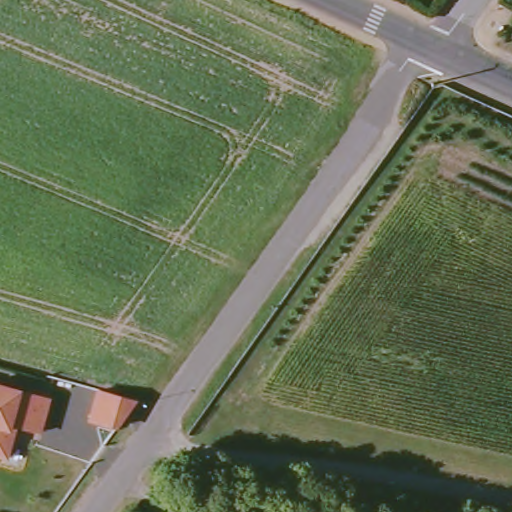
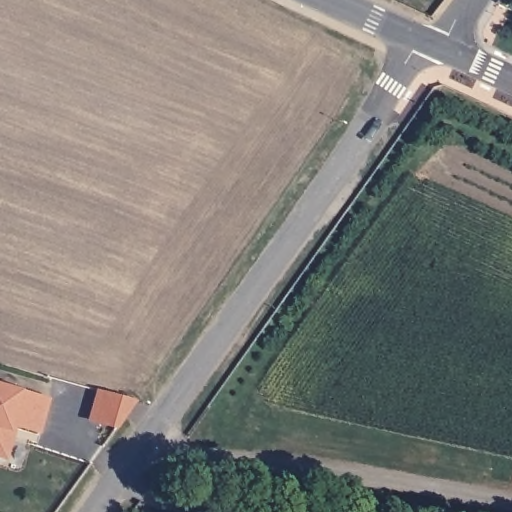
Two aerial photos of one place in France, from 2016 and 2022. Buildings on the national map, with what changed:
unchanged [(0,384),(48,398),(40,431),(15,423),(12,434),(5,457),(0,455),(0,384)]
unchanged [(97,389),(137,400),(117,430),(88,420),(97,389)]

